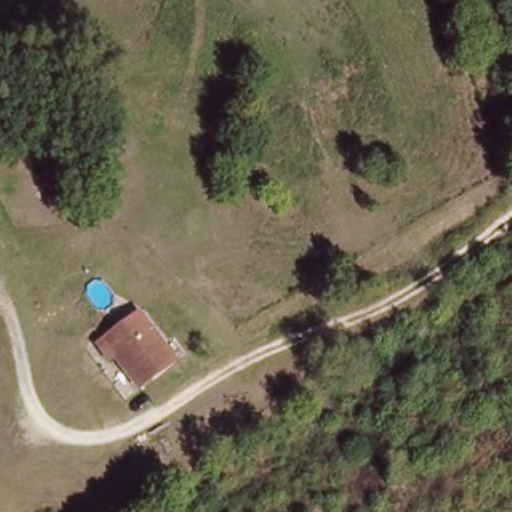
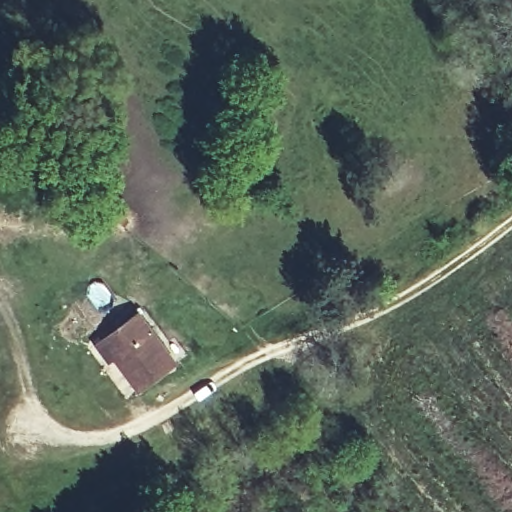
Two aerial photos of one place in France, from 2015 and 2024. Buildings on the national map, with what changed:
unchanged [(136,396),(98,345),(140,313),(178,365),(136,396)]

